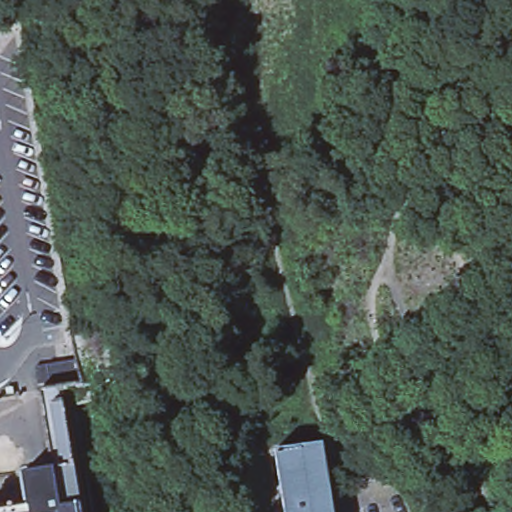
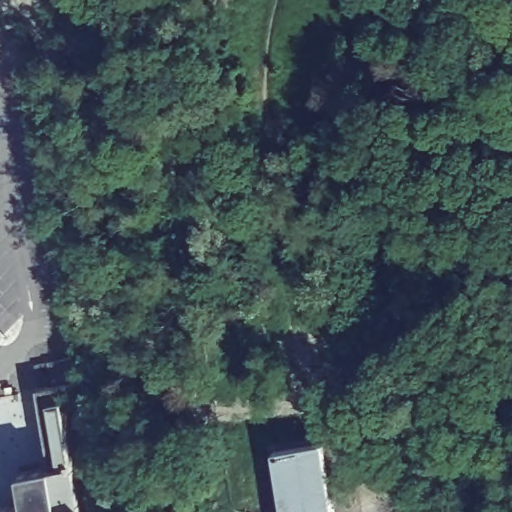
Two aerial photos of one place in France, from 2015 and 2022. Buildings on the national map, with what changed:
unchanged [(19,510),(20,512),(34,510),(28,477),(60,471),(47,394),(63,391),(84,512),(7,512),(19,510)]
unchanged [(277,453),(277,451),(325,443),(325,444),(336,512),(287,512),(277,453)]

